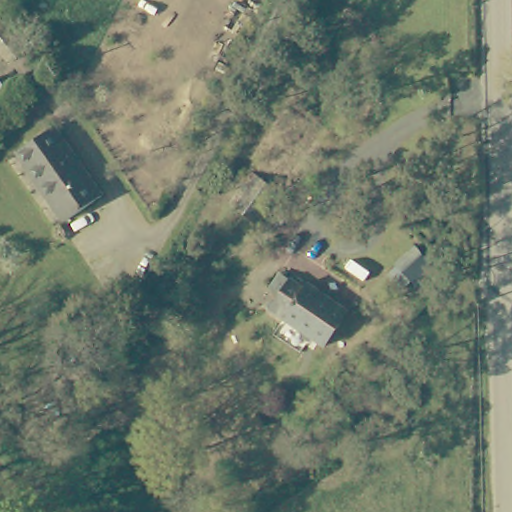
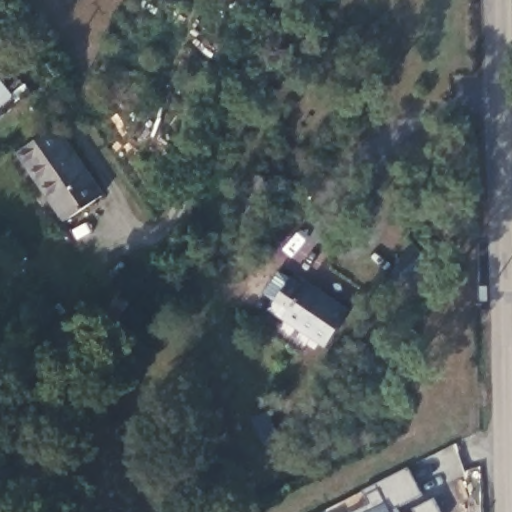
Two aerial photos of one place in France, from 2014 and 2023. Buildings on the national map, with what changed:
unchanged [(20,98),(0,113),(0,77),(20,98)]
unchanged [(109,200),(73,224),(27,154),(61,130),(109,200)]
unchanged [(300,282),(312,289),(318,283),(357,310),(330,348),(278,313),(300,282)]
new [(371,505),(362,489),(407,468),(421,496),(396,508),(398,512),(355,512),(371,505)]
new [(413,508),(432,499),(438,512),(415,512),(413,508)]

